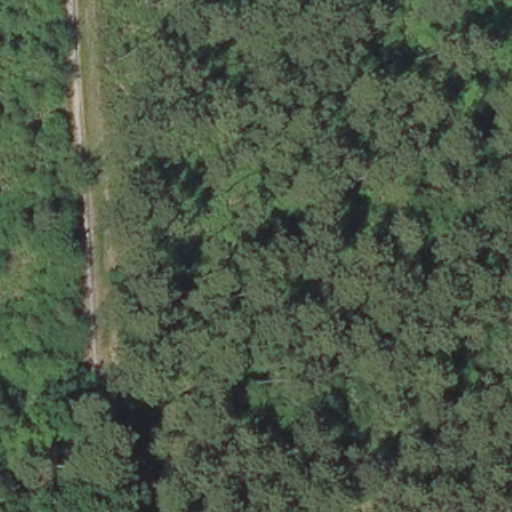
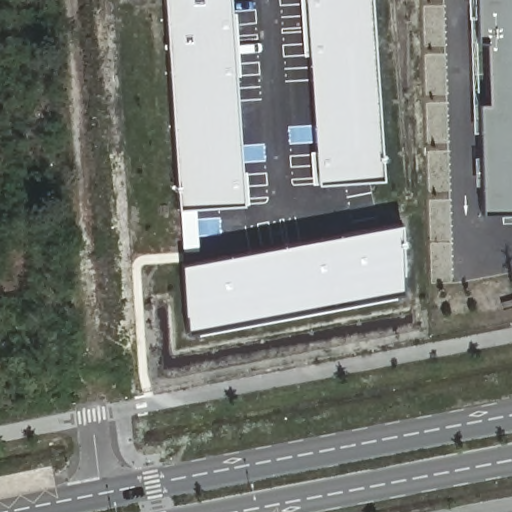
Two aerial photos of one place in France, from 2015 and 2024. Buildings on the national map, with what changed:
new [(164,0),(229,0),(243,203),(178,208),(164,0)]
new [(304,0),(370,0),(381,178),(316,182),(304,0)]
new [(471,132),(468,0),(512,0),(512,221),(498,221),(497,213),(481,213),(480,131),(471,132)]
new [(186,333),(180,264),(399,223),(399,294),(186,333)]

